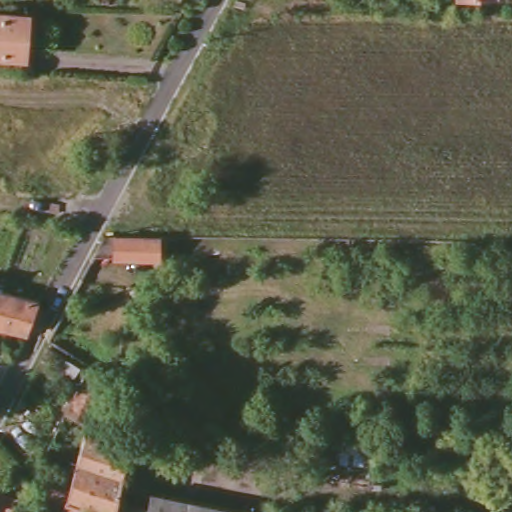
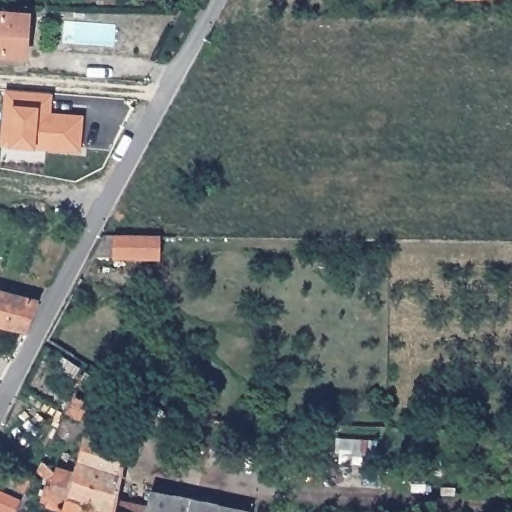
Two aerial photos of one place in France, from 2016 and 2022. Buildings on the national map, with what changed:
unchanged [(24,57),(0,54),(0,15),(29,19),(24,57)]
new [(84,115),(80,152),(0,146),(0,139),(4,90),(52,92),(51,112),(84,115)]
unchanged [(212,182),(211,195),(200,195),(200,182),(212,182)]
unchanged [(169,242),(168,262),(103,261),(114,241),(169,242)]
unchanged [(29,328),(0,321),(0,286),(41,295),(29,328)]
unchanged [(107,390),(97,411),(94,410),(87,422),(67,412),(87,371),(107,390)]
unchanged [(40,502),(46,482),(37,469),(42,458),(56,472),(71,476),(84,432),(127,446),(119,503),(146,508),(145,512),(60,512),(61,510),(40,502)]
unchanged [(336,438),(380,440),(382,470),(338,467),(336,438)]
unchanged [(32,478),(27,490),(15,482),(22,471),(32,478)]
unchanged [(16,512),(3,512),(0,511),(0,492),(1,491),(24,497),(16,512)]
unchanged [(246,512),(145,512),(146,508),(148,492),(246,511),(246,512)]

